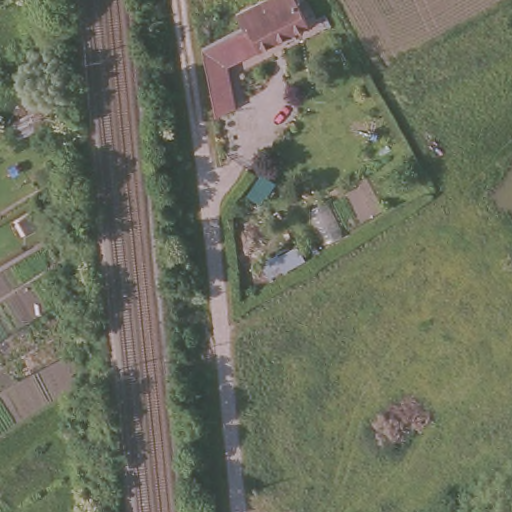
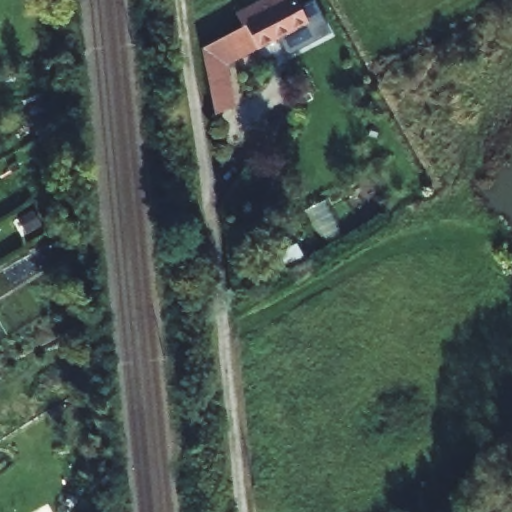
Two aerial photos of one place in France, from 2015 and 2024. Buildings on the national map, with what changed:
unchanged [(200,55),(239,34),(230,17),(263,0),(296,0),(311,27),(226,70),(235,111),(213,120),(200,55)]

